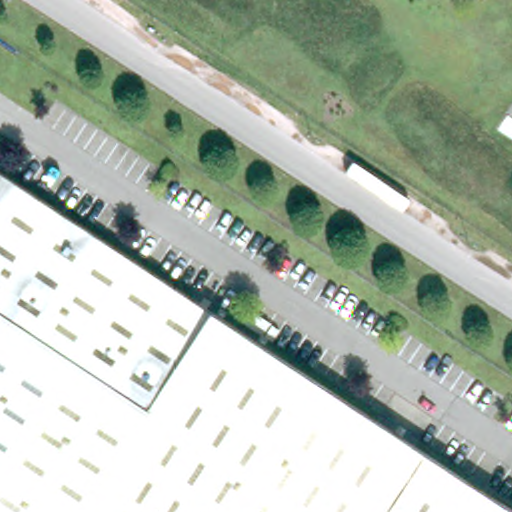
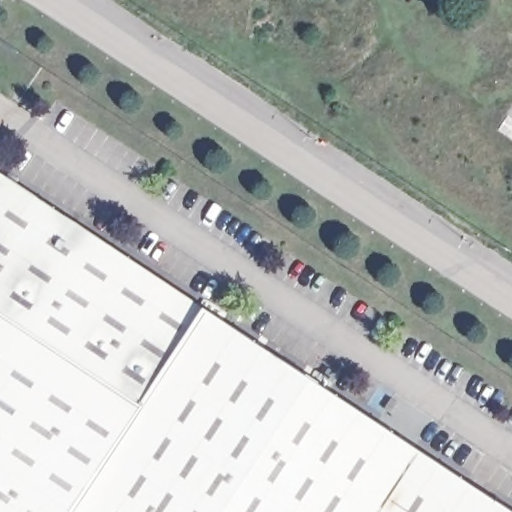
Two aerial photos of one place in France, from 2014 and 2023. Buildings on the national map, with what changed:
unchanged [(512,506),(512,512),(0,512),(0,169),(512,506)]

